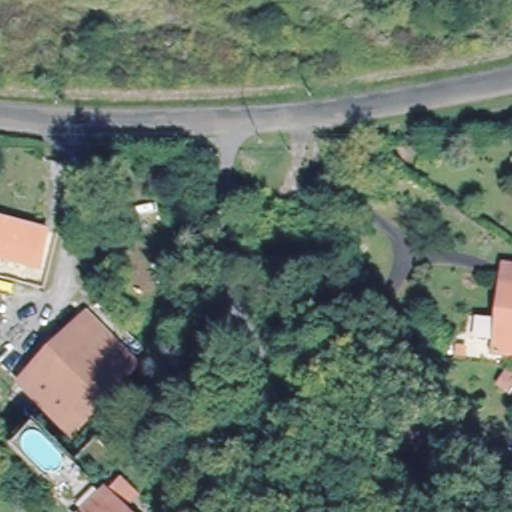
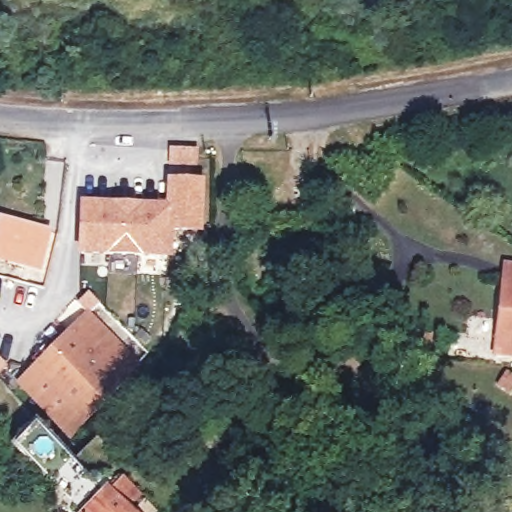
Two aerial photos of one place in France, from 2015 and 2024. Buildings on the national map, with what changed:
demolished [(196,166),(201,166),(209,166),(210,174),(211,178),(197,180),(196,166)]
new [(165,205),(166,180),(204,182),(201,236),(173,236),(171,258),(78,254),(80,201),(165,205)]
unchanged [(0,256),(0,220),(1,218),(47,232),(39,267),(0,256)]
unchanged [(498,344),(507,274),(512,274),(512,345),(498,344)]
unchanged [(91,305),(143,353),(136,361),(69,433),(15,384),(81,312),(83,313),(91,305)]
unchanged [(115,460),(91,485),(78,472),(58,491),(10,442),(30,423),(71,464),(95,440),(115,460)]
unchanged [(85,512),(108,490),(110,492),(122,480),(138,497),(126,509),(129,512),(85,512)]

